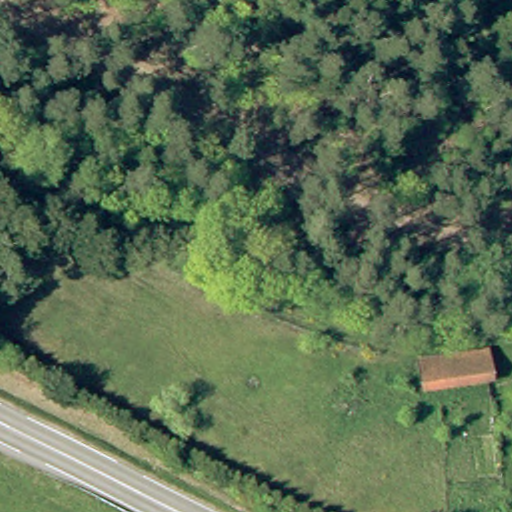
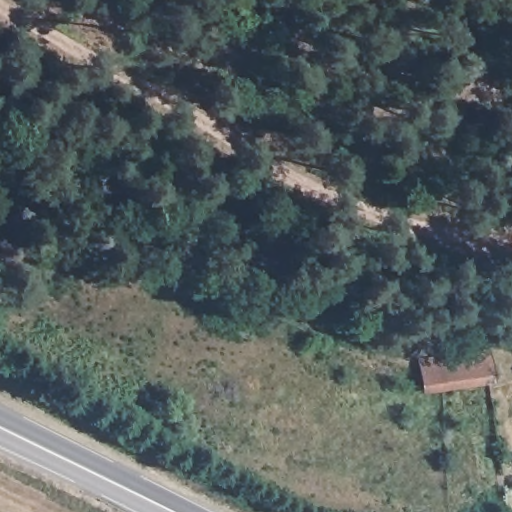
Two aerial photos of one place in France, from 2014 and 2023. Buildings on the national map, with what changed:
unchanged [(484,353),(489,381),(426,389),(422,361),(484,353)]

